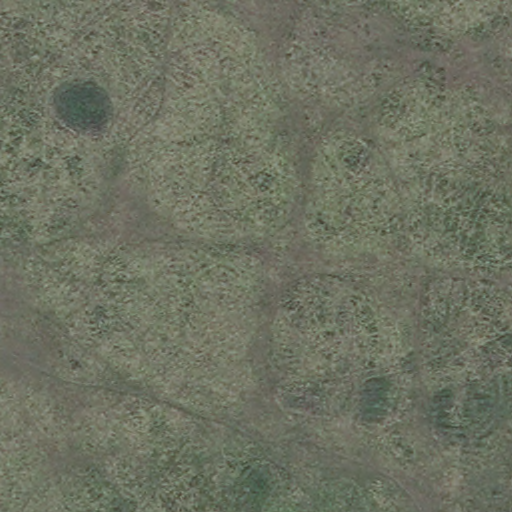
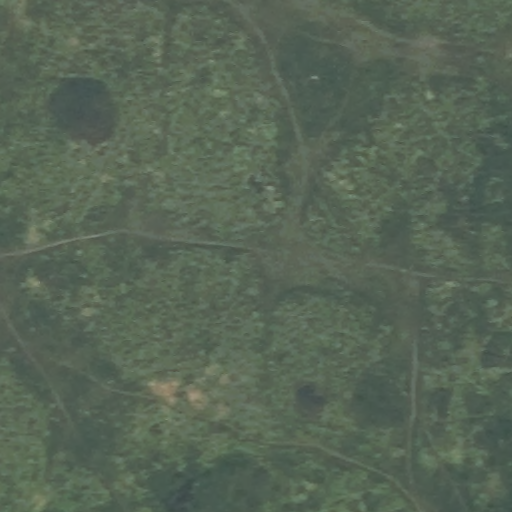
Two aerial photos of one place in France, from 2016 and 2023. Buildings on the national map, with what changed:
[]

